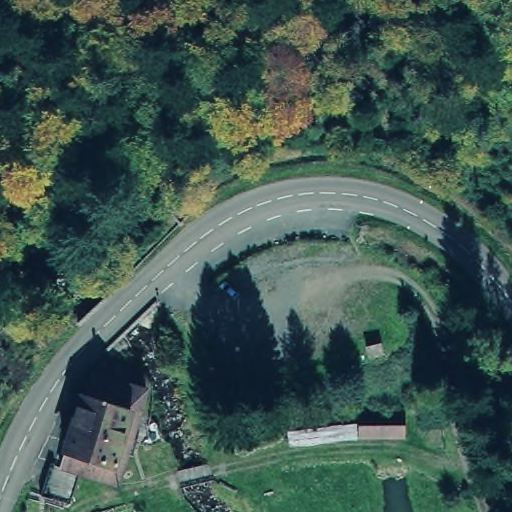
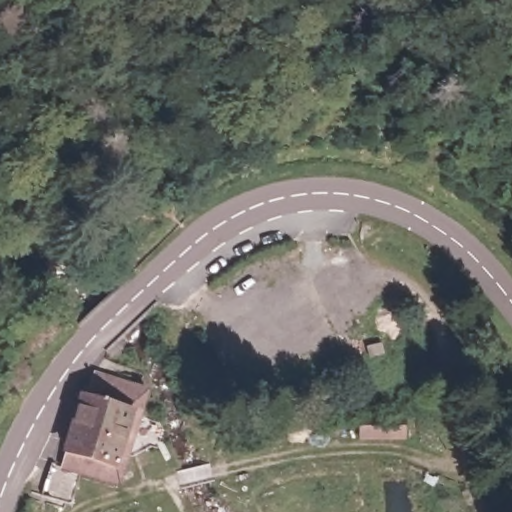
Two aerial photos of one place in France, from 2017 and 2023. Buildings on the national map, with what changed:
unchanged [(392,341),(395,365),(373,369),(370,345),(392,341)]
unchanged [(141,392),(113,490),(53,472),(73,400),(76,400),(87,377),(141,392)]
unchanged [(404,410),(406,439),(359,441),(358,432),(343,434),(343,417),(359,416),(359,412),(404,410)]

